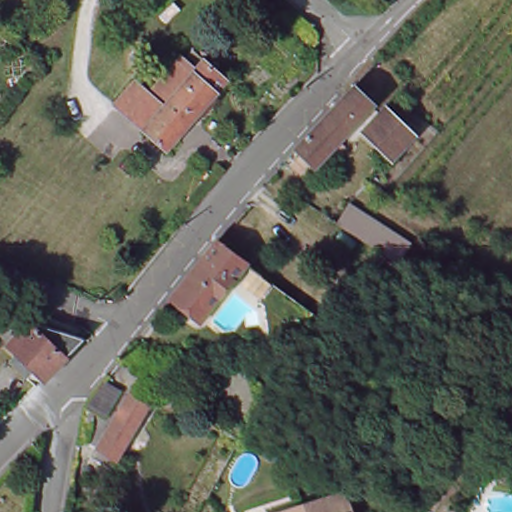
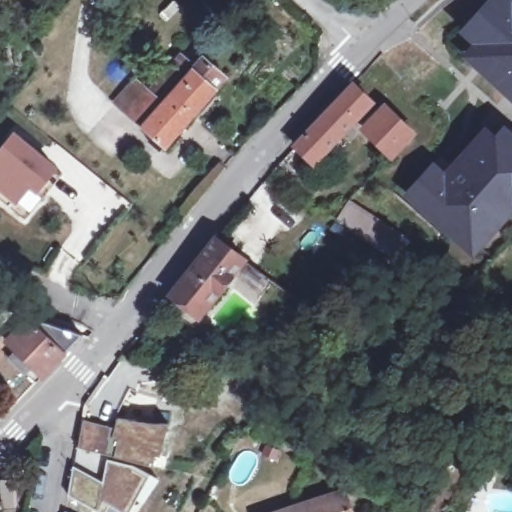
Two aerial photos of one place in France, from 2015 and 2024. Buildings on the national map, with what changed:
new [(489,72),(456,42),(464,34),(463,34),(493,0),(503,0),(511,7),(512,6),(512,100),(485,76),(489,72)]
unchanged [(150,98),(182,61),(196,73),(205,62),(227,80),(167,149),(117,107),(136,86),(150,98)]
unchanged [(374,117),(315,177),(297,161),(356,100),(374,117)]
unchanged [(389,122),(393,126),(416,148),(396,170),(368,142),(389,122)]
new [(16,132),(62,170),(40,196),(32,189),(17,206),(0,191),(0,151),(16,132)]
new [(455,231),(450,237),(406,197),(432,168),(443,179),(485,132),(499,145),(507,135),(512,139),(512,209),(492,232),(476,250),(469,243),(455,231)]
unchanged [(350,206),(399,236),(389,252),(341,222),(350,206)]
unchanged [(247,260),(200,319),(173,297),(219,239),(247,260)]
unchanged [(44,385),(8,349),(0,341),(0,317),(30,327),(83,345),(44,385)]
unchanged [(128,392),(130,390),(149,402),(111,465),(92,453),(98,443),(80,432),(85,402),(105,377),(128,392)]
unchanged [(348,494),(352,512),(305,512),(303,506),(348,494)]
unchanged [(305,512),(276,512),(303,506),(305,512)]

